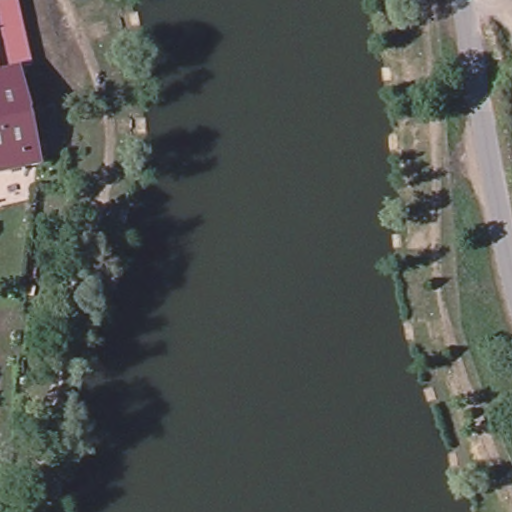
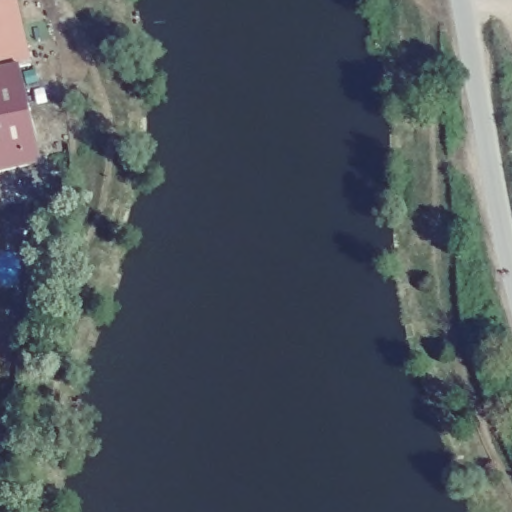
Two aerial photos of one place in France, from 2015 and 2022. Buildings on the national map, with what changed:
unchanged [(24,55),(13,57),(43,166),(0,177),(0,0),(13,0),(19,31),(24,55)]

